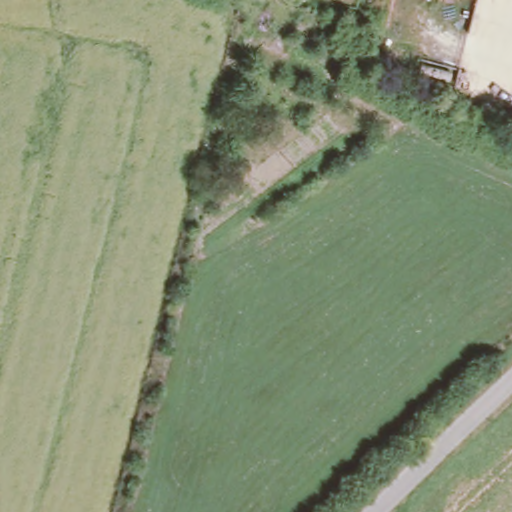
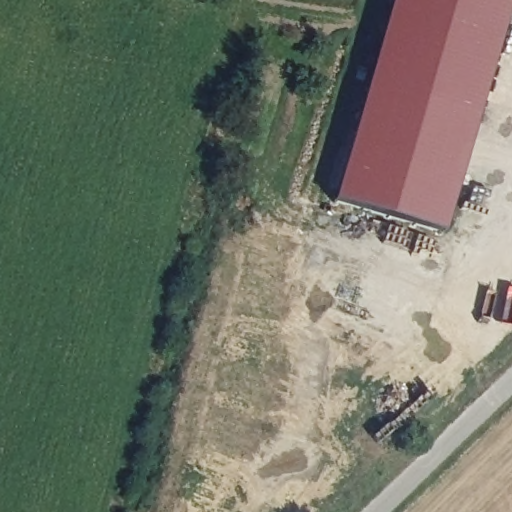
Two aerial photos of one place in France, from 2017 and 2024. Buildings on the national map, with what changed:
new [(510,2),(443,234),(332,201),(391,0),(511,0),(510,2)]

